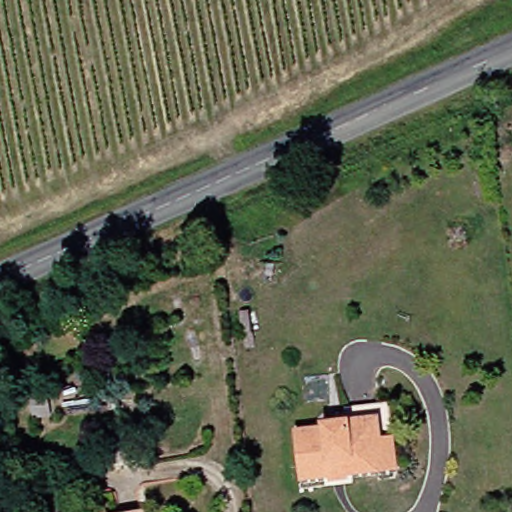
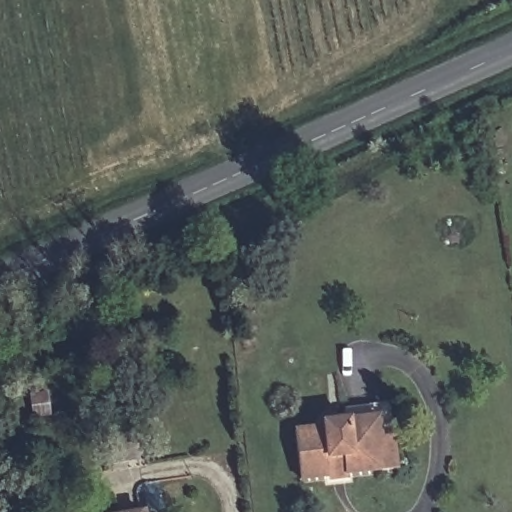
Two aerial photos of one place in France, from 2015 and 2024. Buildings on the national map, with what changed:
unchanged [(346,425),(345,408),(396,405),(401,473),(382,474),(378,423),(346,425)]
unchanged [(307,479),(303,433),(331,432),(330,426),(346,425),(378,423),(382,474),(350,476),(350,482),(331,483),(330,477),(307,479)]
unchanged [(149,512),(123,512),(148,508),(149,512)]

